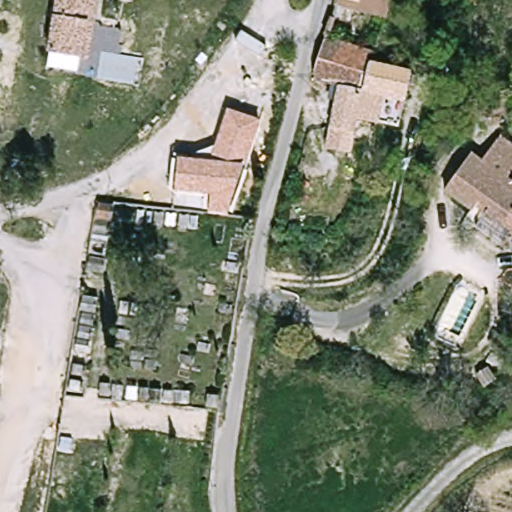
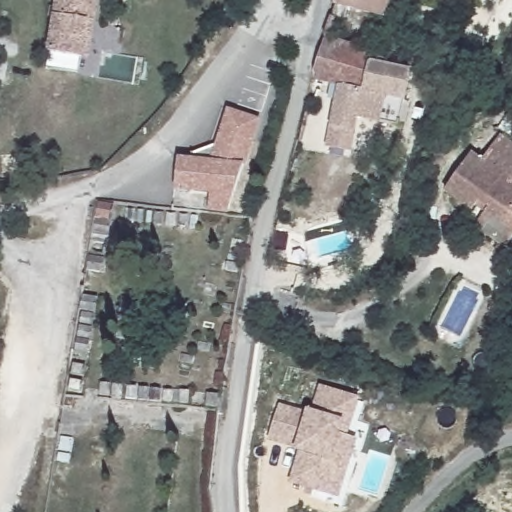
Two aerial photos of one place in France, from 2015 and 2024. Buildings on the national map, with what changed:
unchanged [(49,52),(60,0),(101,0),(95,26),(88,60),(80,59),(49,52)]
unchanged [(343,0),(399,0),(393,21),(343,0)]
unchanged [(383,61),(415,70),(408,97),(373,89),(341,80),(338,93),(320,89),(323,69),(318,67),(324,45),(383,61)]
unchanged [(341,80),(373,89),(386,92),(376,126),(358,121),(353,155),(326,149),(338,93),(341,80)]
unchanged [(261,120),(231,215),(207,212),(208,195),(173,192),(177,153),(211,156),(227,110),(261,120)]
unchanged [(477,230),(487,215),(486,209),(478,204),(472,213),(445,196),(469,154),(481,162),(497,136),(512,146),(512,247),(509,252),(477,230)]
demolished [(348,240),(291,224),(299,199),(321,202),(330,176),(363,179),(348,240)]
new [(304,415),(306,408),(312,410),(320,385),(361,397),(349,435),(358,438),(340,498),(290,484),(298,452),(293,450),(269,440),(280,405),(304,415)]

